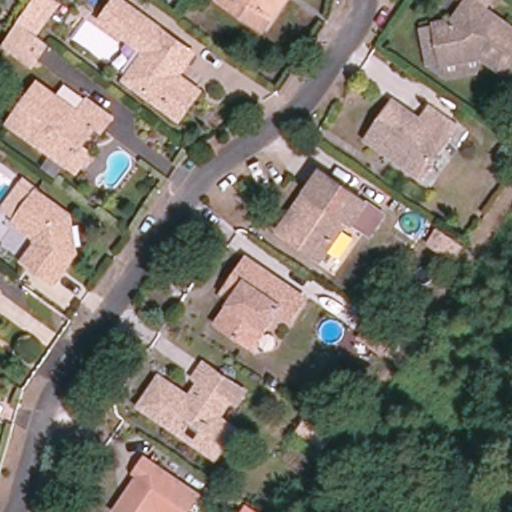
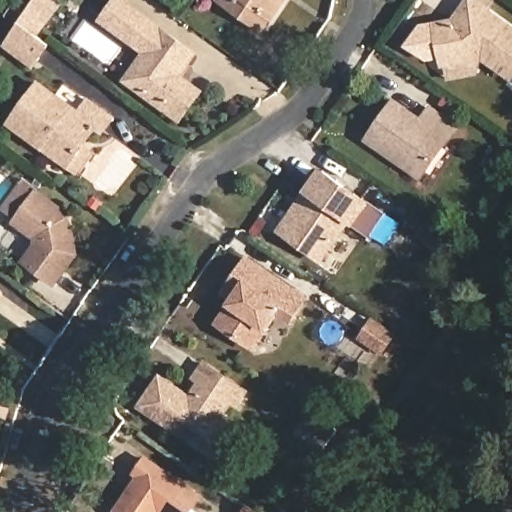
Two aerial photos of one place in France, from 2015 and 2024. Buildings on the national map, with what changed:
unchanged [(4,44),(7,39),(8,38),(12,31),(19,22),(34,0),(52,0),(58,4),(36,35),(49,45),(36,60),(32,66),(4,44)]
unchanged [(159,105),(124,81),(145,52),(99,18),(111,0),(116,0),(190,54),(182,64),(175,65),(173,69),(174,76),(195,92),(175,120),(157,107),(159,105)]
unchanged [(232,0),(285,0),(276,14),(268,25),(232,0)]
unchanged [(469,78),(443,66),(426,55),(422,28),(436,26),(454,21),(458,24),(465,23),(468,19),(460,13),(469,0),(471,0),(512,29),(512,74),(510,77),(482,57),(486,74),(469,78)]
unchanged [(75,112),(85,100),(110,118),(101,131),(95,127),(70,161),(44,142),(40,147),(6,122),(35,82),(75,112)]
unchanged [(393,101),(421,121),(430,108),(455,127),(420,177),(367,139),(393,101)]
unchanged [(384,213),(370,234),(349,220),(321,260),(280,232),(322,171),(384,213)]
unchanged [(70,216),(76,254),(55,284),(25,262),(40,241),(16,223),(38,193),(70,216)]
unchanged [(430,243),(440,229),(465,246),(457,256),(455,260),(430,243)]
unchanged [(290,320),(277,311),(253,347),(218,324),(235,299),(242,288),(232,281),(248,259),(305,298),(290,320)]
unchanged [(385,360),(355,342),(370,317),(402,335),(385,360)]
unchanged [(211,459),(207,456),(136,407),(155,378),(186,399),(194,388),(196,383),(191,379),(200,365),(240,392),(231,405),(226,401),(214,418),(231,430),(211,459)]
unchanged [(302,439),(294,434),(308,413),(332,430),(323,444),(318,450),(302,439)]
unchanged [(115,512),(126,497),(137,495),(146,481),(136,473),(145,459),(200,496),(189,512),(115,512)]
unchanged [(259,512),(245,512),(249,506),(259,512)]

